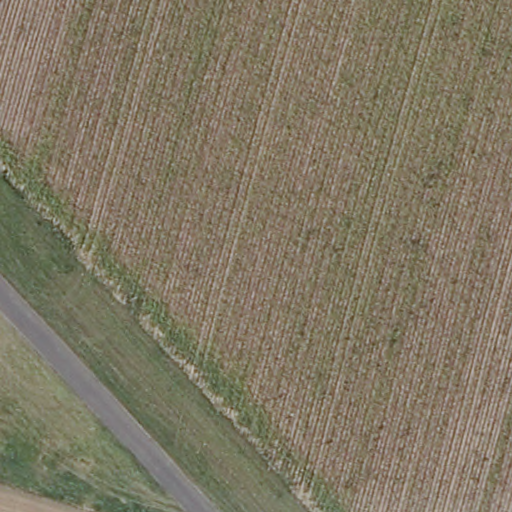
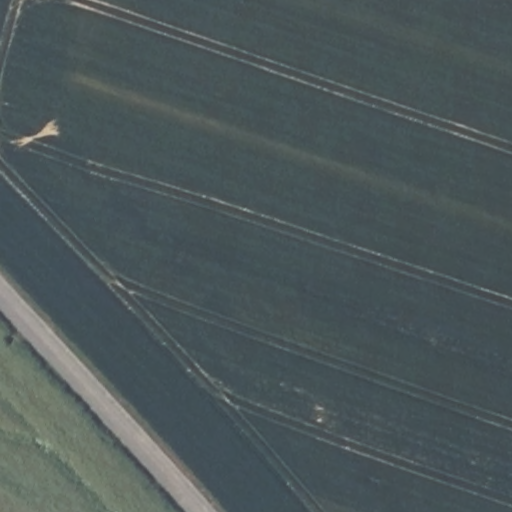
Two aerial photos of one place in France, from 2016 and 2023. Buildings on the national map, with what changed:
[]

